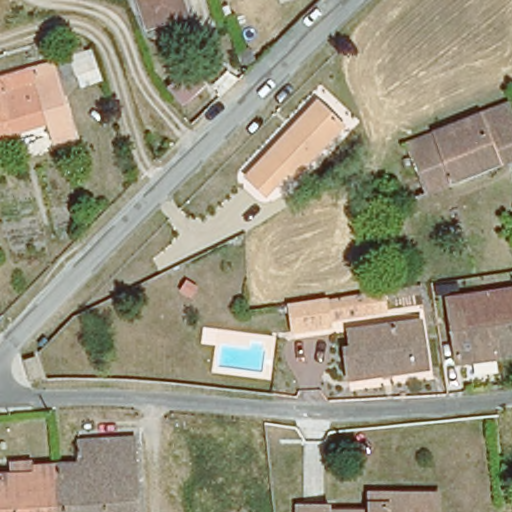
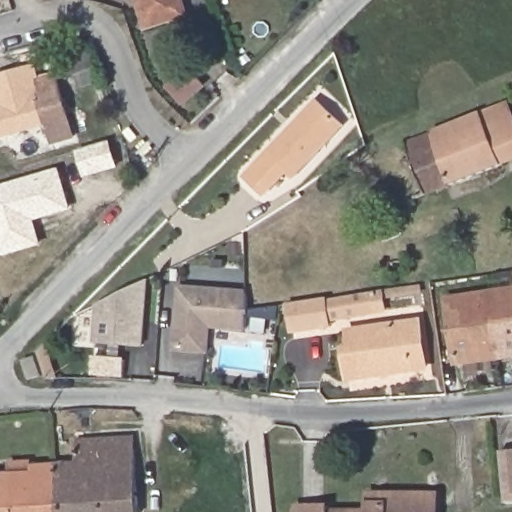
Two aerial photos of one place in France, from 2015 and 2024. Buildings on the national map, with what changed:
unchanged [(146,22),(139,0),(183,0),(186,10),(146,22)]
unchanged [(55,60),(90,51),(99,77),(79,85),(76,76),(60,80),(55,60)]
unchanged [(48,123),(0,137),(0,77),(32,68),(52,62),(55,74),(73,137),(54,142),(48,123)]
unchanged [(342,121),(294,172),(287,167),(266,190),(247,172),(316,97),(342,121)]
unchanged [(508,102),(512,113),(512,159),(502,162),(482,112),(508,102)]
unchanged [(424,192),(405,143),(482,112),(502,162),(424,192)]
new [(40,249),(0,257),(0,256),(0,188),(59,170),(71,210),(34,221),(40,249)]
new [(96,306),(148,281),(144,346),(94,342),(96,306)]
unchanged [(389,285),(421,281),(422,287),(389,291),(389,285)]
unchanged [(495,327),(499,354),(458,360),(447,293),(512,283),(512,325),(495,327)]
new [(178,285),(246,291),(247,331),(212,329),(210,354),(173,351),(178,285)]
unchanged [(325,297),(344,293),(370,288),(383,286),(386,303),(373,306),(346,311),(328,314),(329,321),(292,327),(288,298),(325,293),(325,297)]
unchanged [(416,370),(349,380),(344,348),(351,347),(348,331),(420,320),(423,342),(427,368),(416,370)]
unchanged [(499,354),(495,327),(512,325),(512,352),(499,354)]
unchanged [(56,460),(77,458),(76,436),(135,433),(139,512),(60,512),(56,462),(56,460)]
new [(512,451),(512,503),(503,503),(499,452),(512,451)]
unchanged [(8,456),(31,455),(31,461),(56,460),(56,462),(60,512),(0,512),(0,470),(9,470),(8,456)]
unchanged [(387,493),(387,499),(413,499),(413,496),(438,496),(438,512),(369,512),(369,510),(369,493),(387,493)]
unchanged [(330,507),(330,510),(330,512),(297,512),(297,507),(330,507)]
unchanged [(330,512),(330,510),(369,510),(369,512),(330,512)]

